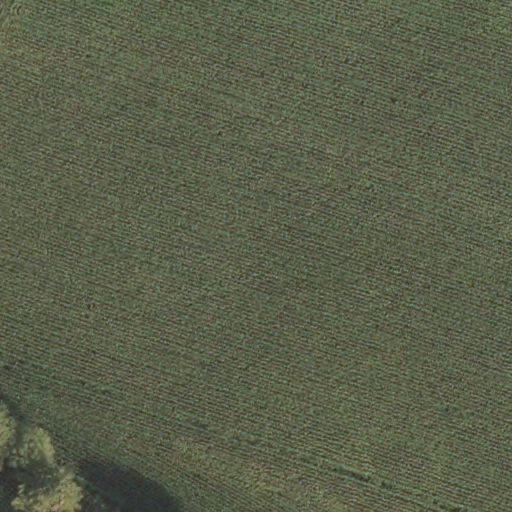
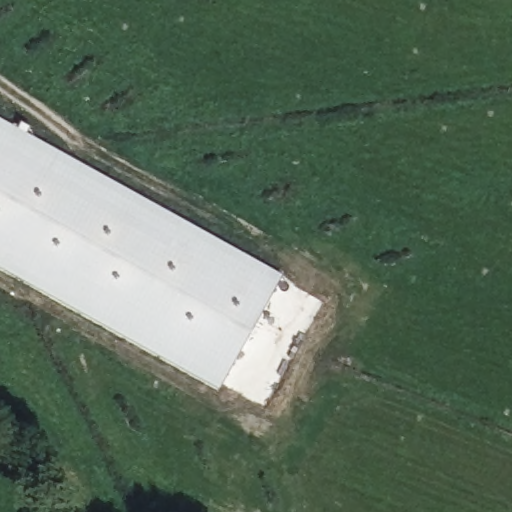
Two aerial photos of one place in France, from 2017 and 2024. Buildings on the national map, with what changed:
new [(283,274),(219,389),(0,268),(0,118),(283,274)]

